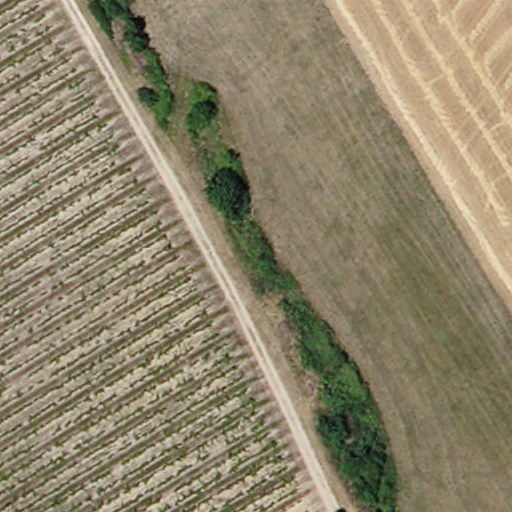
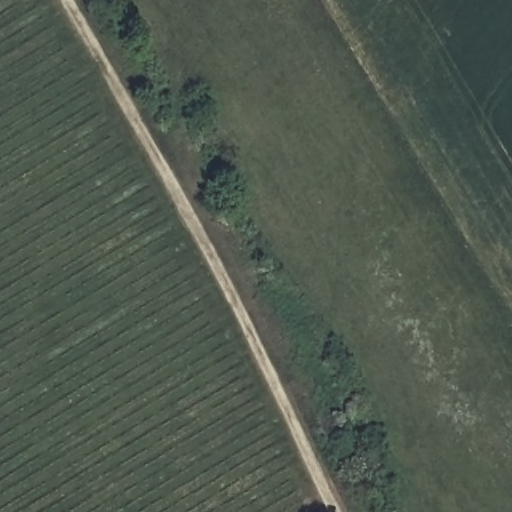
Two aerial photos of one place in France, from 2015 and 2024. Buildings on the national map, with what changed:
[]

